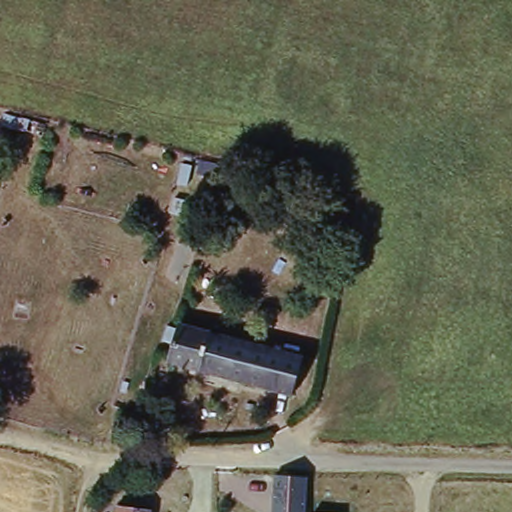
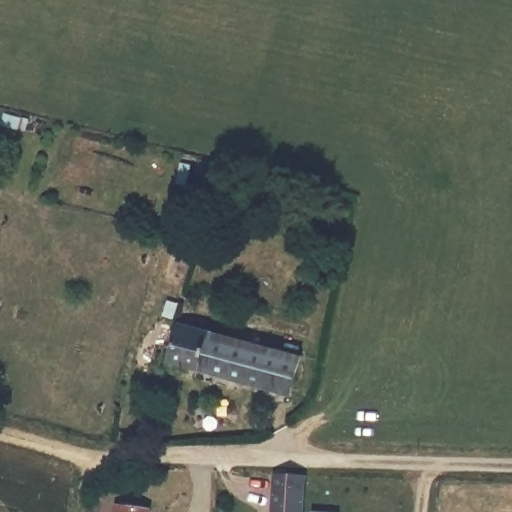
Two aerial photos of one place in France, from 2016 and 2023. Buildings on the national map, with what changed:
unchanged [(302,360),(292,397),(172,366),(180,328),(302,360)]
unchanged [(276,512),(278,481),(291,482),(310,483),(308,512),(276,512)]

